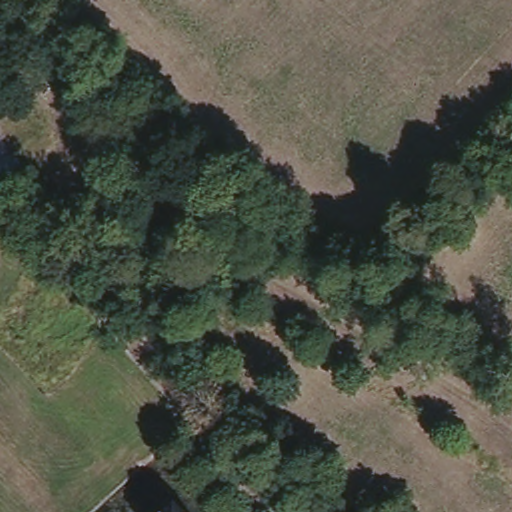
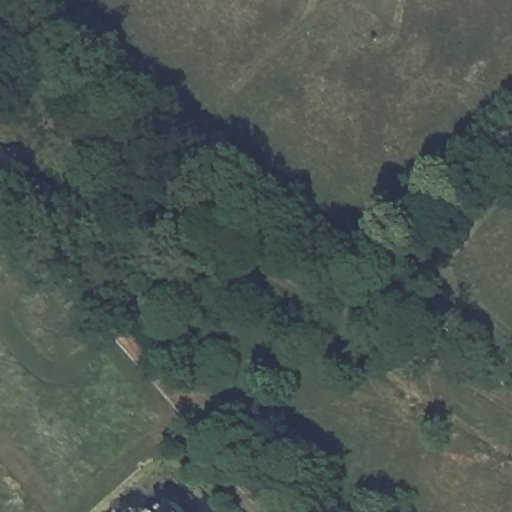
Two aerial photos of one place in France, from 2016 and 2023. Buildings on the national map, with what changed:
unchanged [(17,167),(0,180),(0,179),(0,146),(17,167)]
unchanged [(170,502),(180,512),(159,512),(170,502)]

